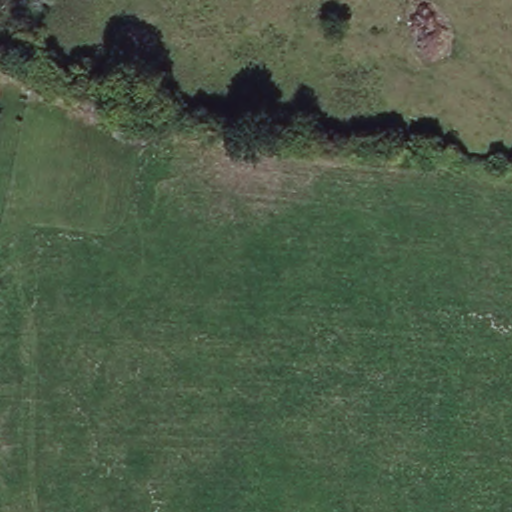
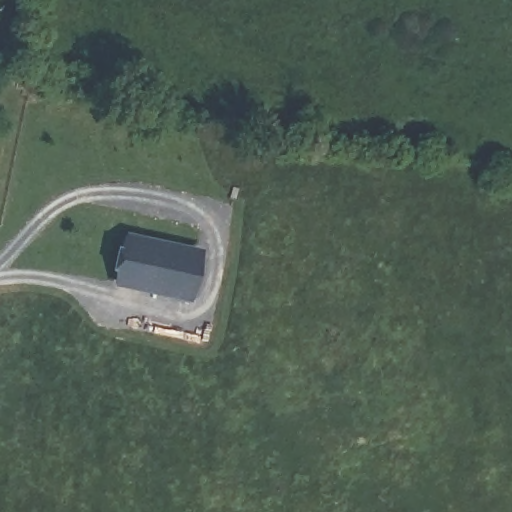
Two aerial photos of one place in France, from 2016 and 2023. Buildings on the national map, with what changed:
new [(121,245),(193,253),(188,294),(117,287),(121,245)]

